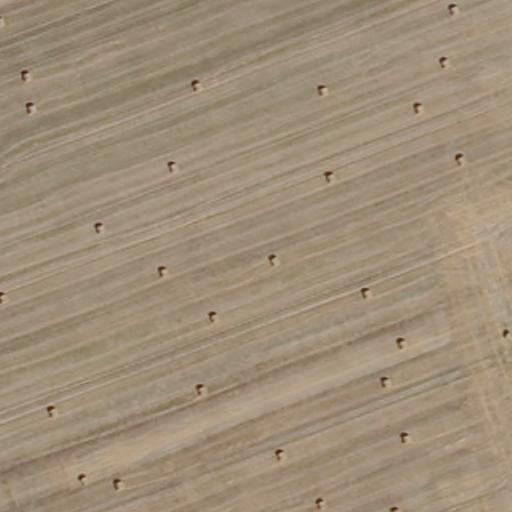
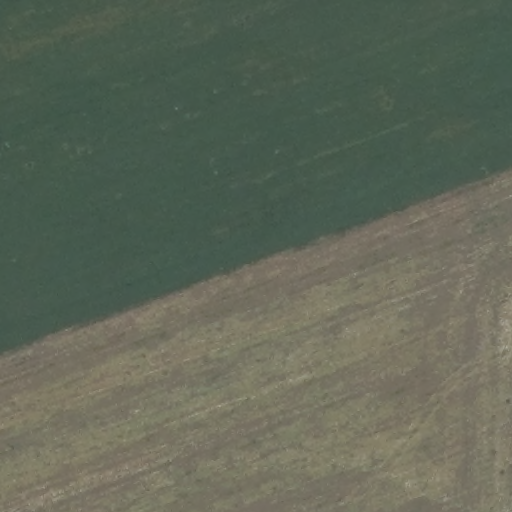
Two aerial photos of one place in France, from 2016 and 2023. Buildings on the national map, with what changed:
[]

